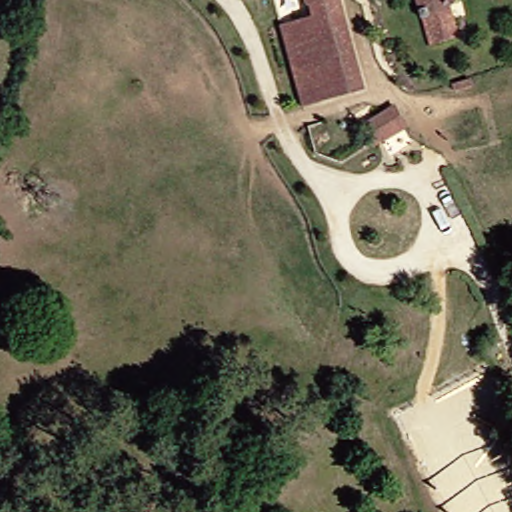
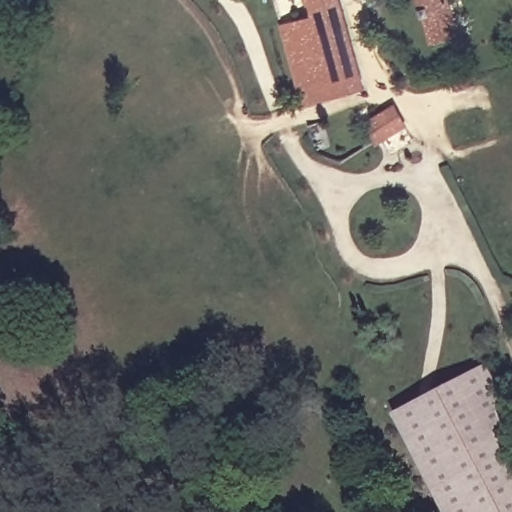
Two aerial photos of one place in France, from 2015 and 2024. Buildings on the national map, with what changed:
unchanged [(370,73),(339,90),(295,16),(286,0),(332,0),(370,73)]
unchanged [(422,44),(411,0),(441,0),(449,37),(422,44)]
unchanged [(314,104),(275,27),(295,16),(339,90),(314,104)]
unchanged [(392,127),(385,114),(412,97),(420,113),(392,127)]
new [(445,512),(393,413),(487,365),(512,410),(512,512),(445,512)]

